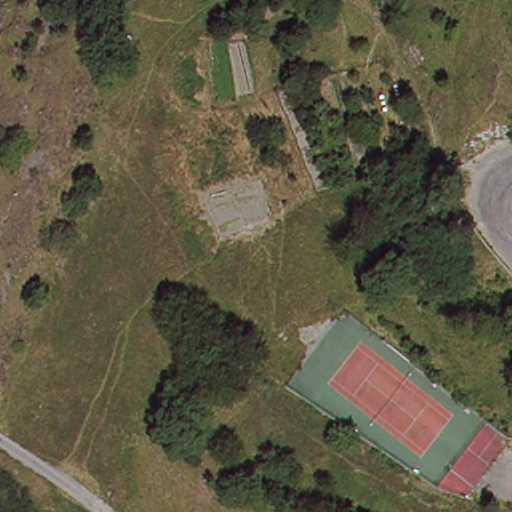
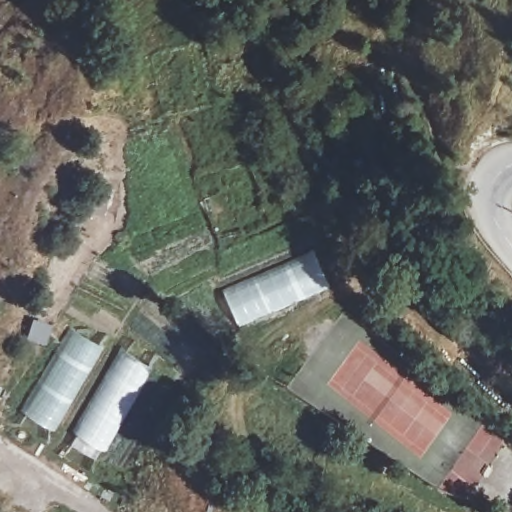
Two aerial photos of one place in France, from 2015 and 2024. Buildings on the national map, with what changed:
new [(315,251),(332,287),(238,326),(223,289),(315,251)]
new [(69,324),(118,354),(122,347),(156,371),(107,453),(60,421),(53,433),(20,413),(69,324)]

